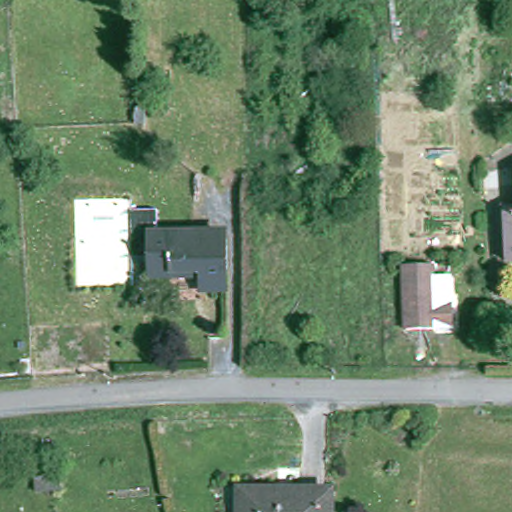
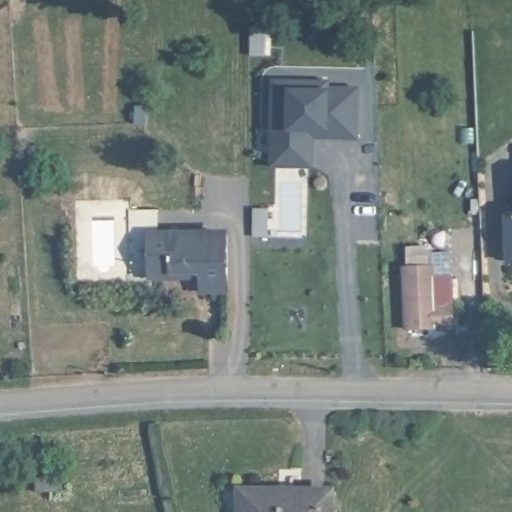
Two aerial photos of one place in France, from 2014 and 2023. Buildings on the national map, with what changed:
demolished [(512,37),(512,95),(512,105),(487,106),(488,36),(512,37)]
new [(330,79),(330,86),(360,86),(359,140),(314,140),(313,168),(269,166),(270,78),(330,79)]
unchanged [(504,262),(502,215),(512,215),(512,262),(504,262)]
unchanged [(152,274),(152,235),(227,234),(228,290),(203,290),(203,273),(194,273),(194,276),(173,276),(173,274),(152,274)]
unchanged [(412,330),(410,267),(438,266),(440,329),(412,330)]
unchanged [(37,492),(35,479),(60,477),(62,490),(37,492)]
unchanged [(331,492),(331,512),(241,512),(242,497),(290,498),(290,492),(331,492)]

